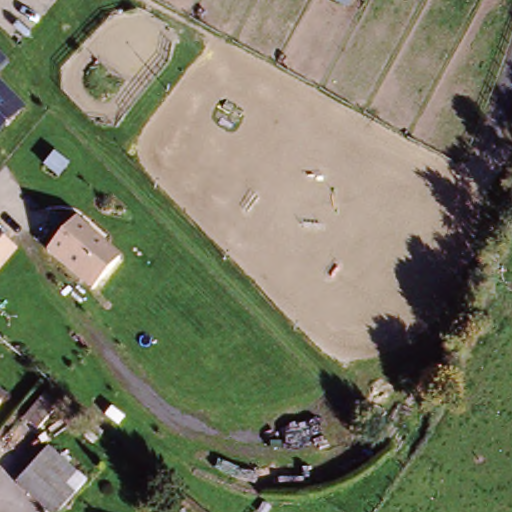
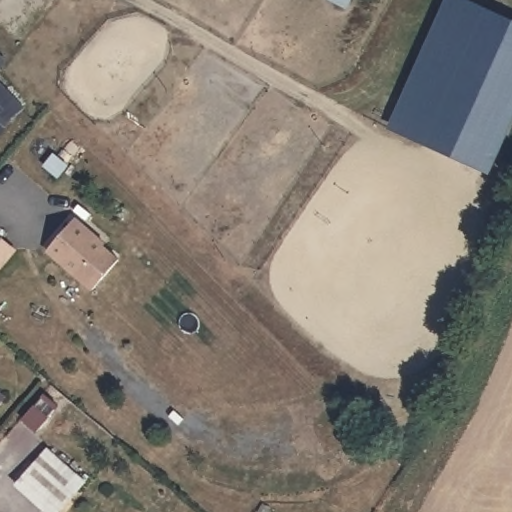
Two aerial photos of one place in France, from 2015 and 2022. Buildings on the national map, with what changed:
new [(386,124),(446,0),(468,0),(512,21),(512,121),(487,172),(386,124)]
unchanged [(0,69),(0,53),(10,61),(0,69)]
unchanged [(0,133),(0,84),(25,109),(0,133)]
unchanged [(105,241),(102,244),(120,262),(90,294),(44,253),(75,218),(105,241)]
unchanged [(0,270),(0,236),(17,251),(0,270)]
unchanged [(0,409),(0,389),(10,397),(0,409)]
unchanged [(63,511),(27,479),(45,459),(82,491),(63,511)]

